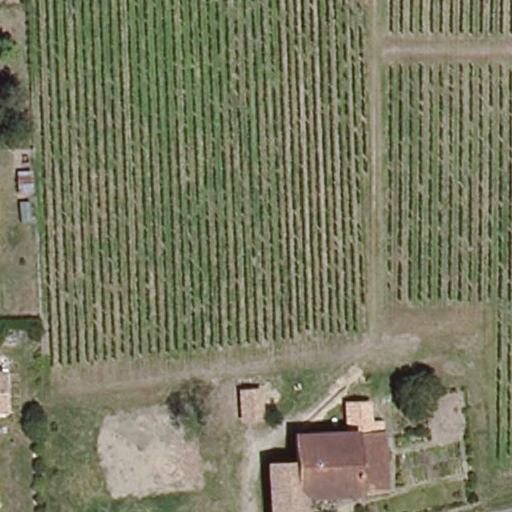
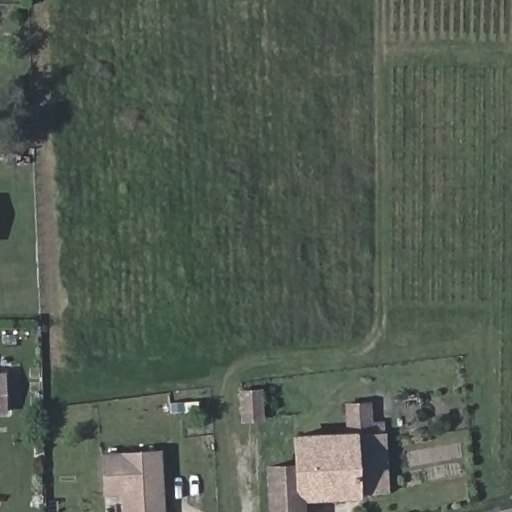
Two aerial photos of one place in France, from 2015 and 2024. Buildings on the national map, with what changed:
unchanged [(0,409),(0,369),(3,408),(0,409)]
unchanged [(236,388),(254,388),(255,415),(238,416),(236,388)]
unchanged [(279,512),(277,464),(305,463),(305,432),(356,431),(355,400),(378,399),(379,419),(390,418),(390,429),(394,491),(307,494),(308,512),(279,512)]
new [(101,451),(163,447),(166,512),(124,512),(123,494),(104,494),(101,451)]

